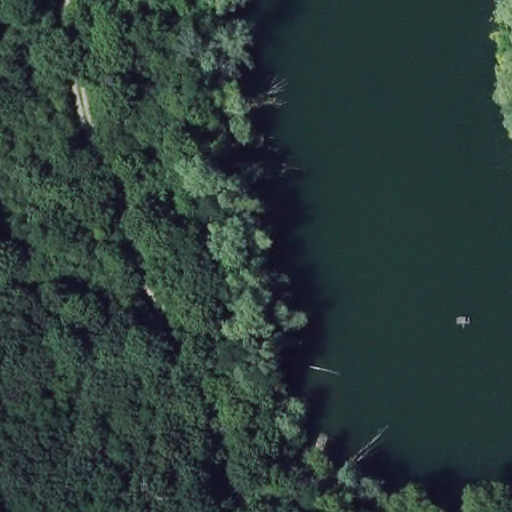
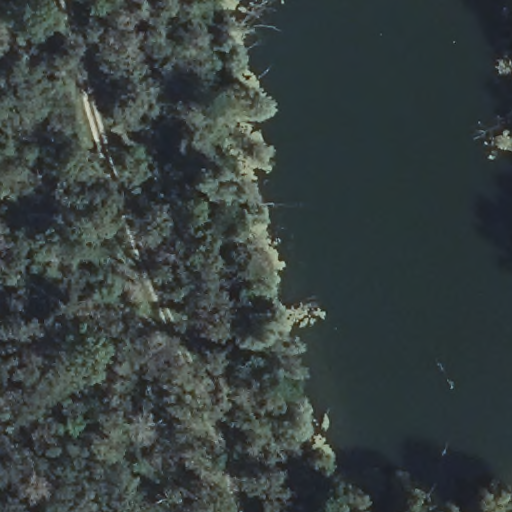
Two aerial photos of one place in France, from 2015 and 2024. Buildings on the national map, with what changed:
unchanged [(38,96),(45,125),(24,129),(17,100),(38,96)]

